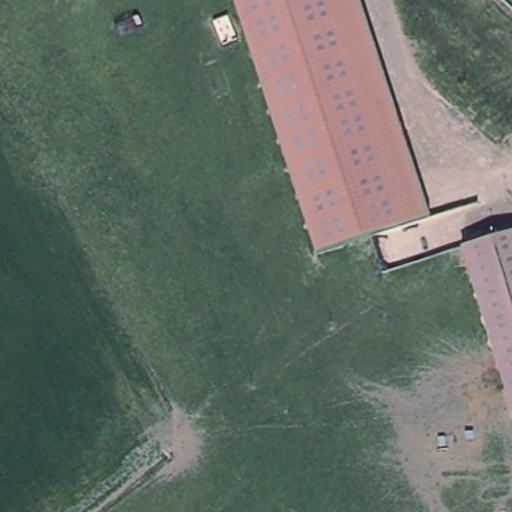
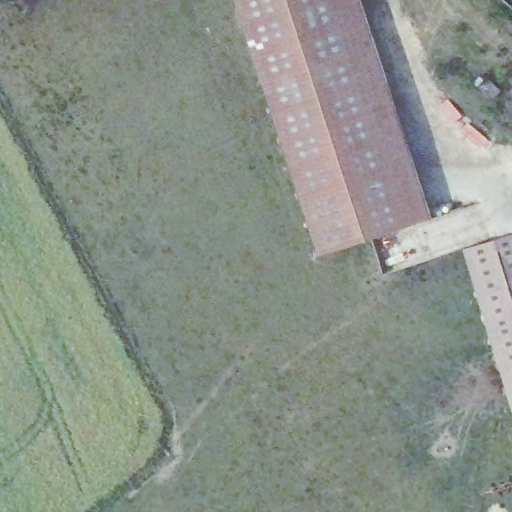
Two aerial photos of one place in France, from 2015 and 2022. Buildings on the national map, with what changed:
unchanged [(369,236),(314,254),(231,0),(357,0),(428,218),(404,225),(369,236)]
unchanged [(512,231),(512,418),(461,247),(512,231)]

